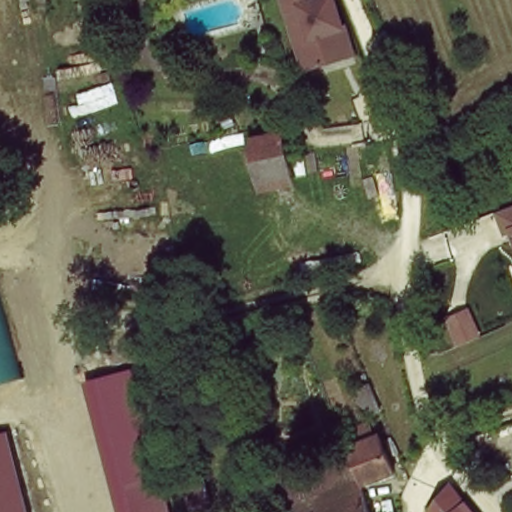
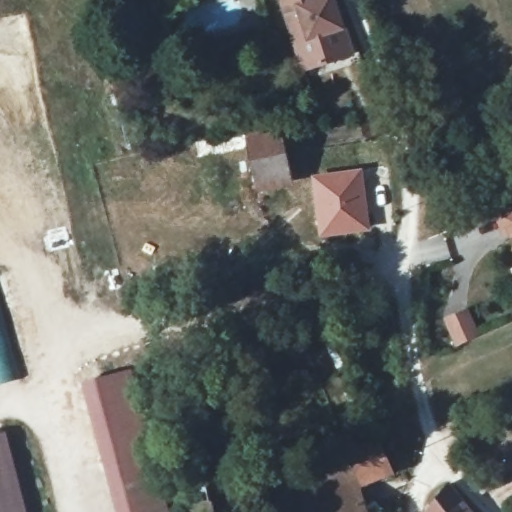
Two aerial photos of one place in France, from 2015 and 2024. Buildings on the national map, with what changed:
unchanged [(340,39),(346,59),(299,71),(279,0),(338,0),(348,35),(340,39)]
unchanged [(253,145),(283,144),(290,174),(260,180),(253,145)]
new [(363,167),(372,230),(319,238),(310,175),(363,167)]
unchanged [(502,234),(494,213),(512,207),(512,240),(509,232),(502,234)]
unchanged [(22,380),(0,385),(0,299),(22,380)]
unchanged [(181,512),(116,512),(82,383),(136,370),(181,512)]
unchanged [(381,409),(363,416),(354,393),(371,386),(381,409)]
unchanged [(341,441),(338,432),(364,423),(372,441),(385,437),(401,483),(365,497),(350,461),(341,441)]
new [(27,512),(0,512),(0,435),(8,433),(27,512)]
unchanged [(365,497),(370,512),(282,512),(273,485),(264,488),(256,464),(289,453),(297,479),(350,461),(365,497)]
unchanged [(425,506),(447,490),(466,512),(429,512),(425,506)]

